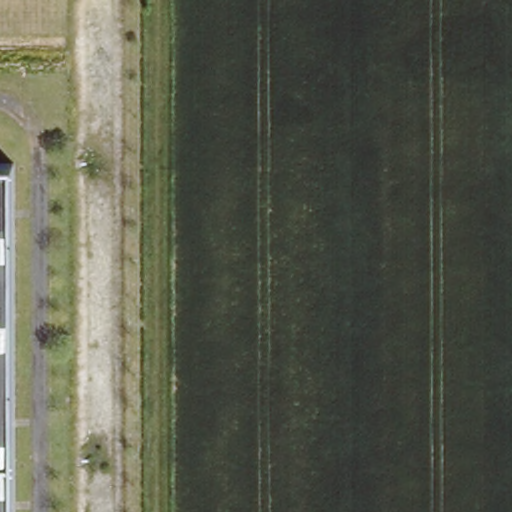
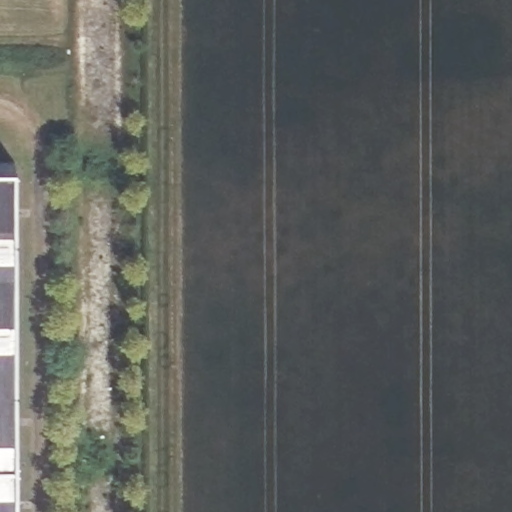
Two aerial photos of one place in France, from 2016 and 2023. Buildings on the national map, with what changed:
unchanged [(8,165),(9,512),(0,512),(0,165),(8,165)]

